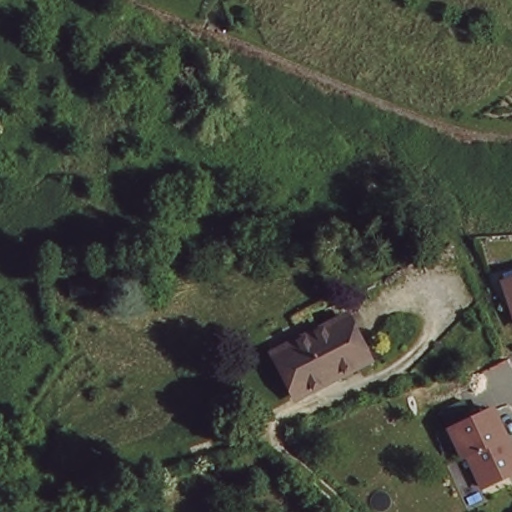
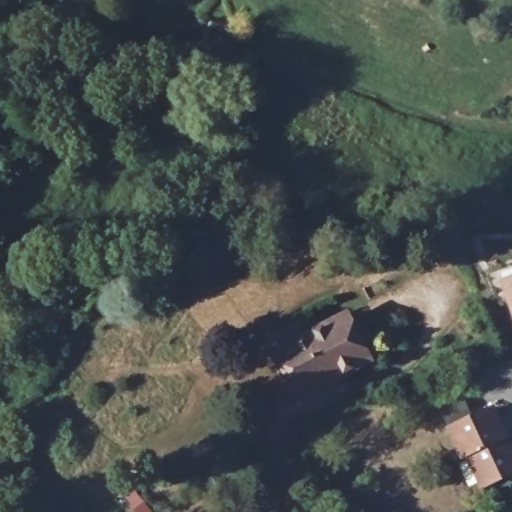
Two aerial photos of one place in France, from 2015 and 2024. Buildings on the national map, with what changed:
unchanged [(502,280),(512,277),(512,309),(502,280)]
unchanged [(285,375),(275,349),(344,319),(366,366),(304,392),(294,396),(285,375)]
unchanged [(481,482),(468,450),(463,452),(450,423),(494,405),(506,433),(510,443),(512,448),(512,469),(481,482)]

